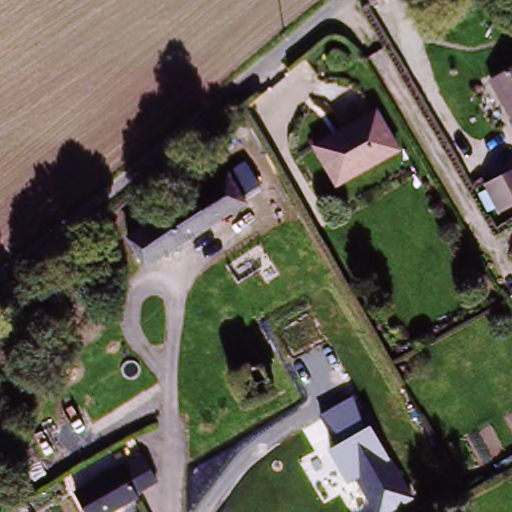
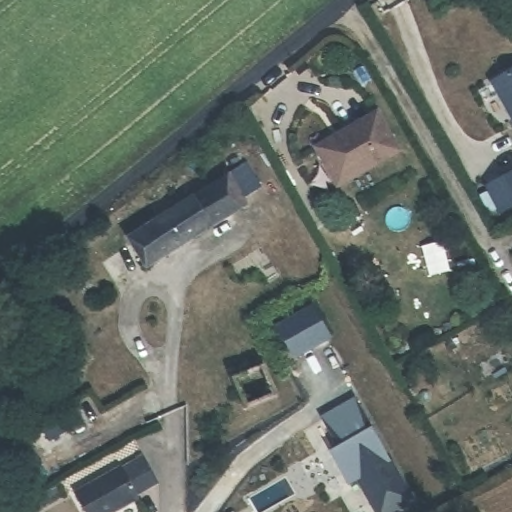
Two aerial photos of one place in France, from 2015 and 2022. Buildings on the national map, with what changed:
unchanged [(491,89),(512,77),(512,126),(491,89)]
unchanged [(375,113),(397,152),(336,187),(313,149),(375,113)]
unchanged [(235,179),(247,173),(265,203),(253,209),(145,268),(129,238),(235,179)]
unchanged [(482,197),(491,192),(489,187),(512,174),(512,209),(504,213),(501,209),(492,214),(482,197)]
new [(329,338),(295,358),(278,328),(312,309),(329,338)]
unchanged [(395,512),(375,512),(358,481),(347,487),(328,451),(337,445),(321,417),(353,398),(413,501),(395,512)]
unchanged [(145,458),(159,484),(138,496),(139,498),(114,512),(86,512),(77,496),(145,458)]

